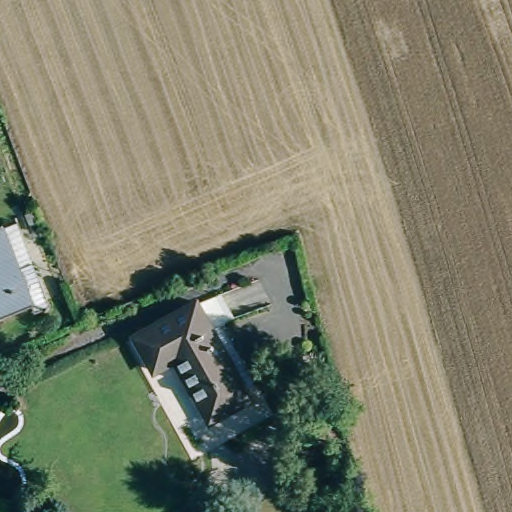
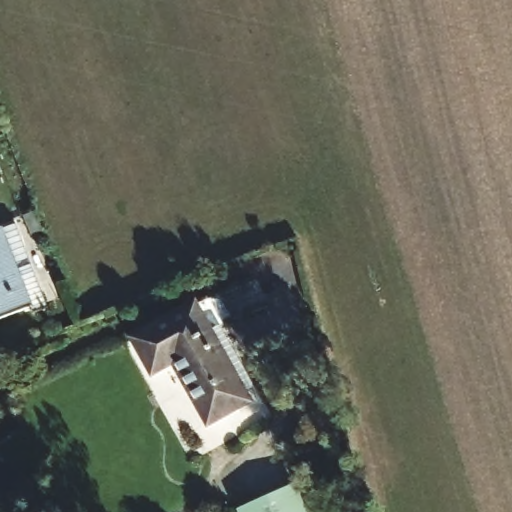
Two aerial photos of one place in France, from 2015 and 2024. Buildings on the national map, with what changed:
unchanged [(20,285),(0,228),(18,221),(37,280),(20,285)]
unchanged [(20,285),(37,280),(45,305),(0,321),(0,228),(20,285)]
unchanged [(206,415),(175,355),(151,365),(133,332),(197,299),(246,395),(206,415)]
new [(309,512),(242,512),(240,508),(296,483),(309,512)]

